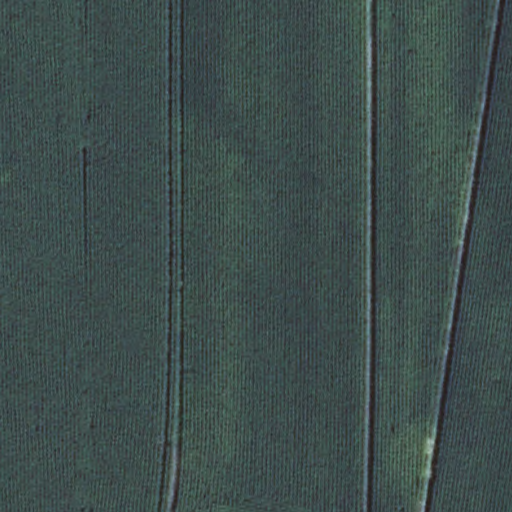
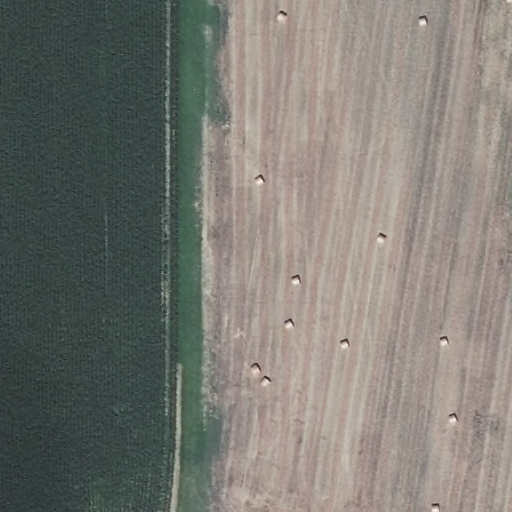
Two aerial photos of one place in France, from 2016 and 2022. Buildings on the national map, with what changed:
[]

